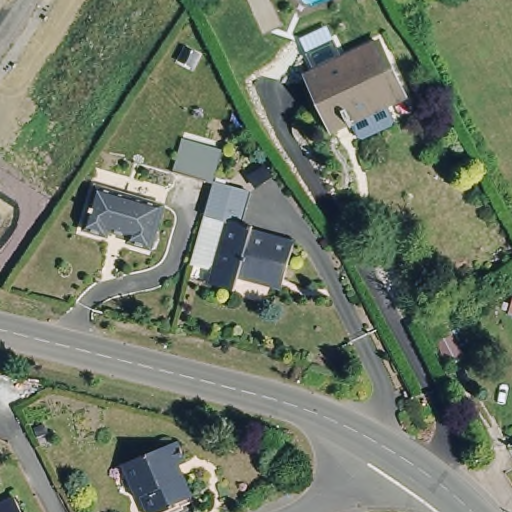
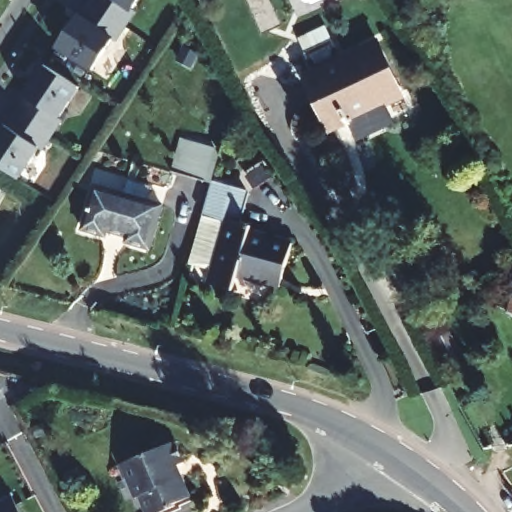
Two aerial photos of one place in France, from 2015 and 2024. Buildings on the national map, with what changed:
new [(137,12),(117,40),(115,38),(95,71),(57,47),(89,0),(139,0),(133,10),(137,12)]
unchanged [(397,96),(327,128),(304,75),(373,42),(397,96)]
new [(61,118),(64,119),(44,150),(41,148),(22,179),(0,165),(0,133),(45,63),(81,86),(61,118)]
unchanged [(218,170),(216,179),(209,178),(175,169),(180,152),(184,135),(203,140),(217,144),(225,145),(218,170)]
unchanged [(239,260),(218,271),(219,268),(232,216),(207,209),(209,204),(216,180),(253,190),(245,220),(256,224),(254,230),(284,238),(239,260)]
unchanged [(151,246),(127,241),(129,234),(116,231),(114,237),(85,230),(95,195),(98,185),(111,187),(163,201),(151,246)]
unchanged [(219,268),(194,262),(207,209),(232,216),(219,268)]
unchanged [(297,241),(285,285),(242,274),(237,288),(215,282),(218,271),(239,260),(284,238),(297,241)]
unchanged [(133,495),(120,463),(172,440),(180,458),(176,460),(180,470),(177,472),(184,488),(167,497),(168,502),(146,512),(139,493),(133,495)]
unchanged [(22,512),(0,512),(0,508),(16,500),(22,512)]

